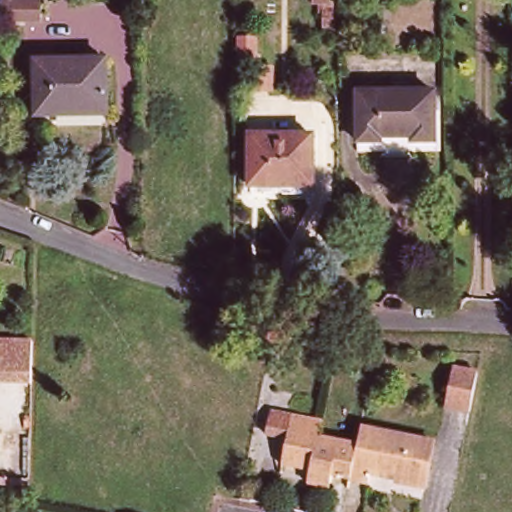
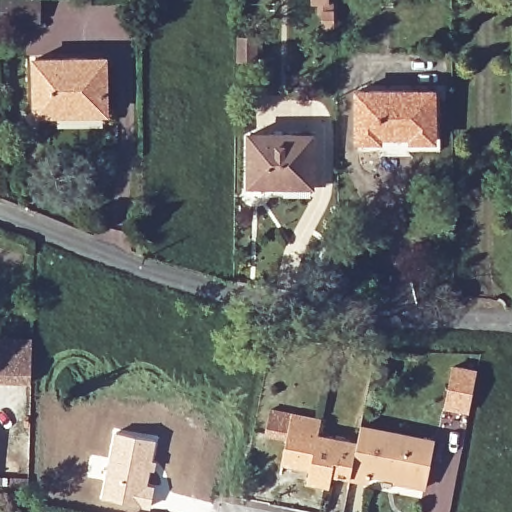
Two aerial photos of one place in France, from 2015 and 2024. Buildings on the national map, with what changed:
unchanged [(258,36),(257,61),(238,60),(238,36),(258,36)]
unchanged [(107,116),(39,117),(37,63),(105,61),(107,116)]
unchanged [(441,151),(358,150),(359,92),(440,91),(441,151)]
unchanged [(315,185),(251,184),(252,135),(314,135),(315,185)]
unchanged [(0,343),(32,343),(31,353),(30,386),(0,385),(0,343)]
unchanged [(449,408),(457,369),(481,374),(473,413),(449,408)]
unchanged [(336,477),(333,488),(312,484),(314,473),(288,468),(296,422),(322,427),(321,439),(360,447),(353,480),(336,477)]
unchanged [(360,447),(364,428),(434,443),(426,486),(371,475),(369,483),(353,480),(360,447)]
new [(114,430),(157,438),(148,483),(155,484),(150,506),(98,498),(114,430)]

